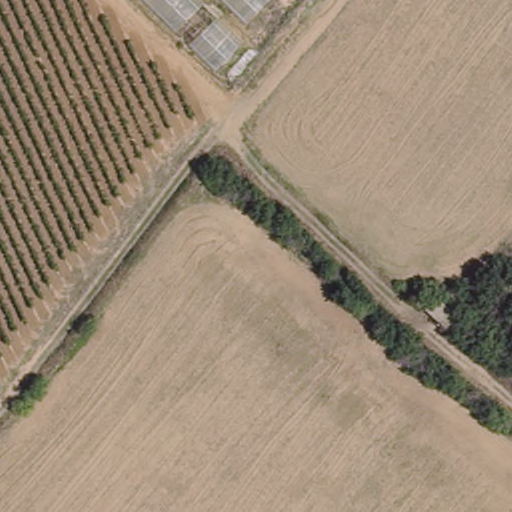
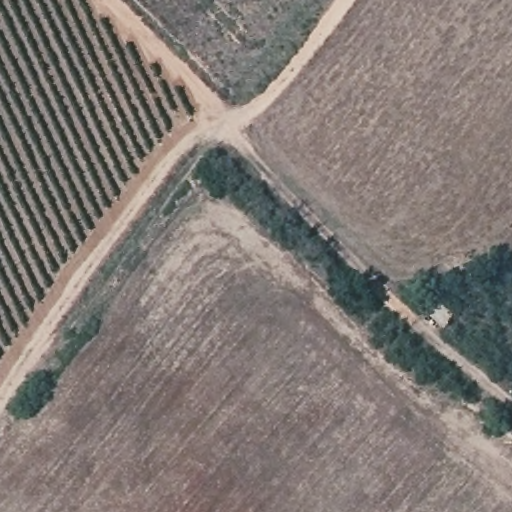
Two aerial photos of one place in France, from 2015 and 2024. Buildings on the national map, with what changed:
demolished [(138,0),(272,0),(213,74),(138,0)]
unchanged [(457,318),(449,327),(425,309),(434,298),(457,318)]

